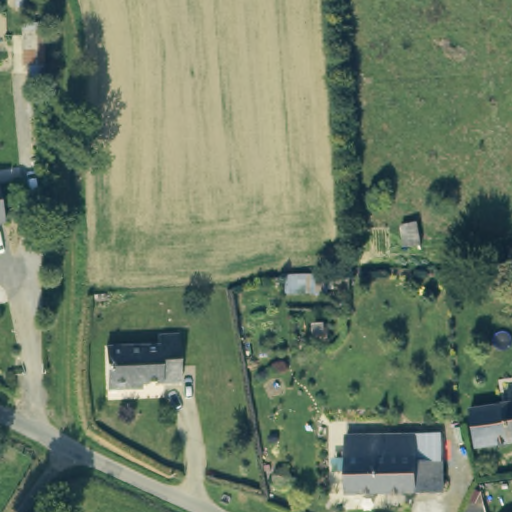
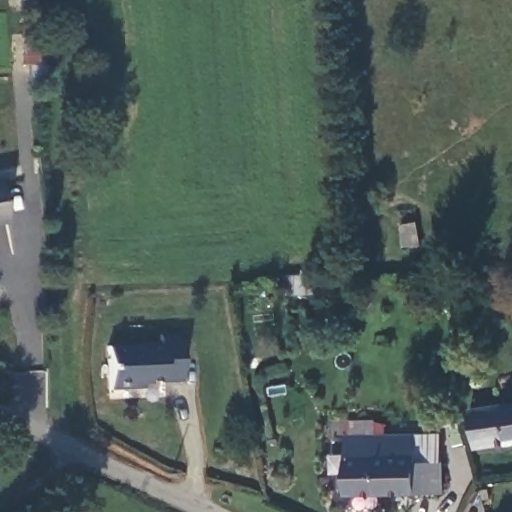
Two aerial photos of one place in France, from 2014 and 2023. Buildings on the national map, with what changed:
unchanged [(6,218),(0,219),(0,188),(6,218)]
unchanged [(308,287),(283,287),(283,273),(308,273),(308,287)]
unchanged [(181,379),(135,382),(136,388),(111,390),(108,346),(156,342),(155,333),(177,332),(181,379)]
unchanged [(470,411),(512,405),(512,442),(473,447),(470,411)]
unchanged [(348,493),(347,436),(417,435),(442,435),(442,464),(443,492),(348,493)]
unchanged [(290,470),(294,474),(294,481),(291,486),(285,488),(279,487),(275,482),(275,476),(278,471),(284,468),(290,470)]

